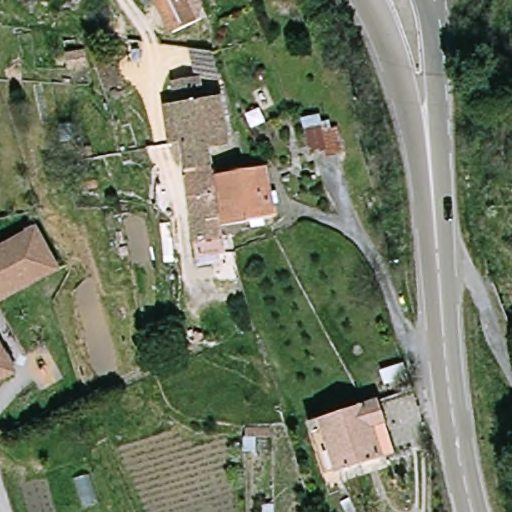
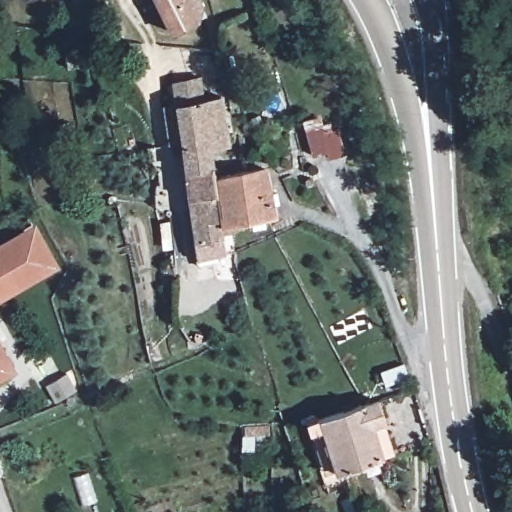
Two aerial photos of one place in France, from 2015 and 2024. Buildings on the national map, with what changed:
unchanged [(180,36),(153,0),(202,0),(213,17),(180,36)]
unchanged [(209,107),(226,105),(234,152),(216,155),(219,177),(222,189),(228,229),(233,256),(205,261),(186,150),(171,151),(165,114),(180,111),(177,89),(206,84),(209,107)]
unchanged [(347,119),(353,152),(345,155),(314,163),(307,137),(304,128),(336,120),(347,119)]
unchanged [(261,182),(265,208),(249,210),(251,225),(228,229),(222,189),(261,182)]
unchanged [(39,226),(61,267),(0,301),(0,247),(39,226)]
unchanged [(20,370),(0,381),(0,336),(20,370)]
unchanged [(327,411),(385,402),(387,420),(373,423),(382,477),(337,485),(327,411)]

